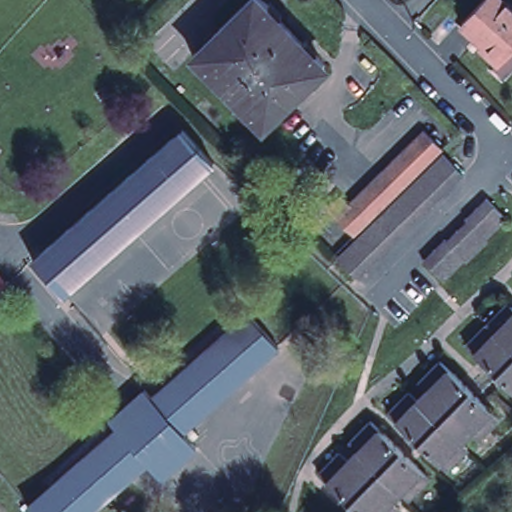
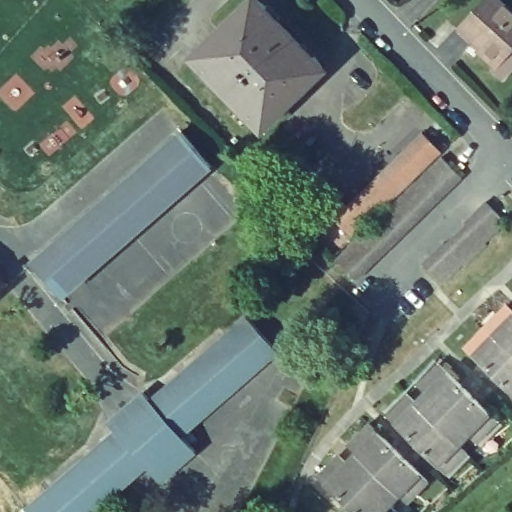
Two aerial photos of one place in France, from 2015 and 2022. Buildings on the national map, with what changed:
unchanged [(192,52),(243,0),(268,0),(271,1),(266,7),(310,53),(317,49),(320,69),(266,122),(246,116),(250,111),(204,69),(200,73),(192,52)]
unchanged [(492,60),(496,55),(479,39),(482,36),(473,28),(471,30),(459,19),(461,17),(459,15),(473,0),(509,0),(512,3),(512,60),(503,70),(492,60)]
unchanged [(181,127),(213,164),(62,294),(31,257),(181,127)]
unchanged [(373,183),(383,173),(395,162),(405,153),(416,142),(425,133),(445,151),(435,161),(424,172),(414,182),(403,193),(393,203),(381,214),(370,225),(351,204),(362,194),(373,183)]
unchanged [(341,260),(446,158),(466,178),(361,281),(341,260)]
unchanged [(422,263),(443,242),(447,246),(467,225),(465,221),(486,201),(505,221),(485,242),(487,245),(466,266),(463,263),(442,284),(422,263)]
unchanged [(3,286),(0,289),(0,283),(3,286)]
unchanged [(506,305),(512,311),(512,353),(486,327),(506,305)]
unchanged [(144,390),(152,398),(243,318),(275,355),(180,437),(144,467),(142,470),(111,433),(116,429),(109,421),(144,390)]
unchanged [(494,377),(465,348),(486,327),(512,353),(512,358),(494,377)]
unchanged [(426,387),(418,379),(438,358),(467,386),(436,418),(416,398),(426,387)]
unchanged [(512,358),(512,394),(494,377),(512,358)]
unchanged [(458,439),(436,418),(467,386),(496,414),(475,436),(468,429),(458,439)]
unchanged [(436,418),(415,440),(386,412),(407,390),(416,398),(436,418)]
unchanged [(458,439),(465,446),(443,468),(415,440),(436,418),(458,439)]
unchanged [(376,469),(355,448),(347,440),(368,419),(397,448),(376,469)]
unchanged [(93,512),(30,512),(26,507),(111,433),(142,470),(93,512)]
unchanged [(180,437),(196,456),(161,487),(144,467),(180,437)]
unchanged [(317,472),(337,451),(345,458),(355,448),(376,469),(345,500),(317,472)]
unchanged [(426,476),(405,497),(397,489),(376,469),(397,448),(426,476)]
unchanged [(387,499),(395,506),(390,512),(357,512),(345,500),(376,469),(397,489),(387,499)]

